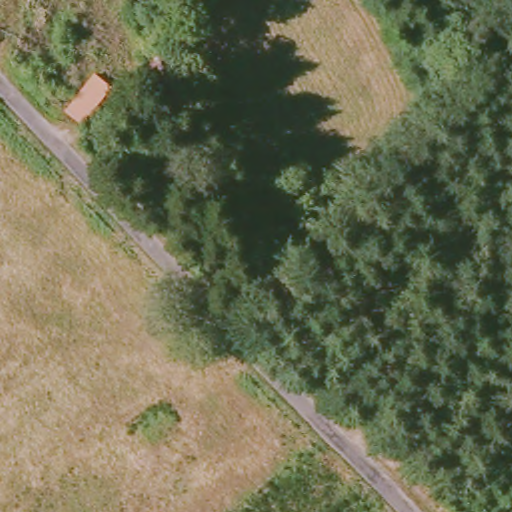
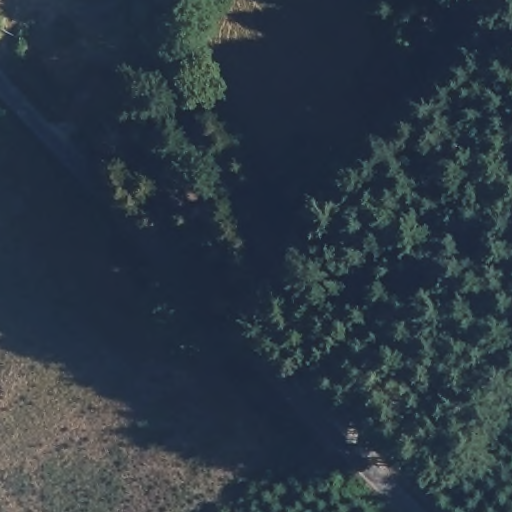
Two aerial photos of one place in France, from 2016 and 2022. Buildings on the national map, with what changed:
unchanged [(90,85),(103,96),(85,119),(71,107),(90,85)]

